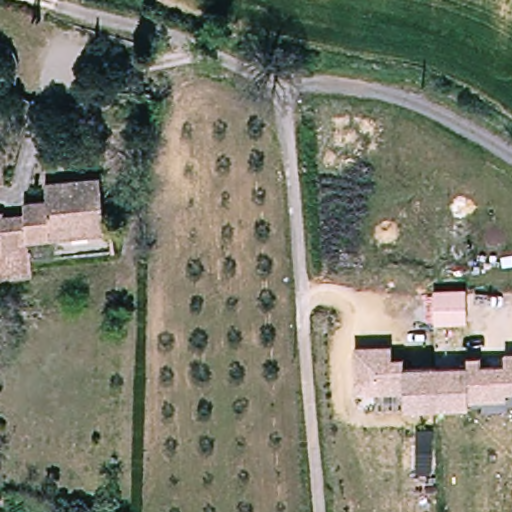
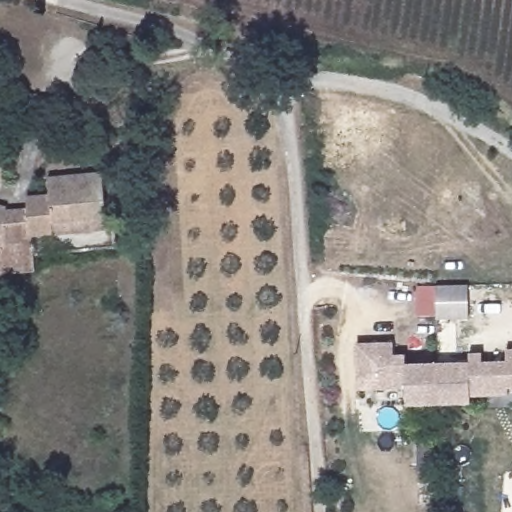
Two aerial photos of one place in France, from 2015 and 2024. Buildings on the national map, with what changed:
unchanged [(55,235),(32,237),(31,207),(30,197),(52,195),(50,179),(105,173),(109,217),(117,217),(118,228),(55,235)]
unchanged [(32,237),(32,242),(35,270),(0,273),(0,211),(2,212),(31,207),(32,237)]
unchanged [(467,285),(467,319),(437,321),(436,286),(467,285)]
unchanged [(360,365),(360,342),(395,341),(395,354),(408,353),(408,362),(440,361),(441,401),(410,402),(409,385),(378,386),(361,387),(360,365)]
unchanged [(473,400),(441,401),(440,361),(472,360),(472,351),(485,351),(485,360),(510,359),(509,348),(512,348),(512,384),(511,384),(511,392),(473,393),(473,400)]

